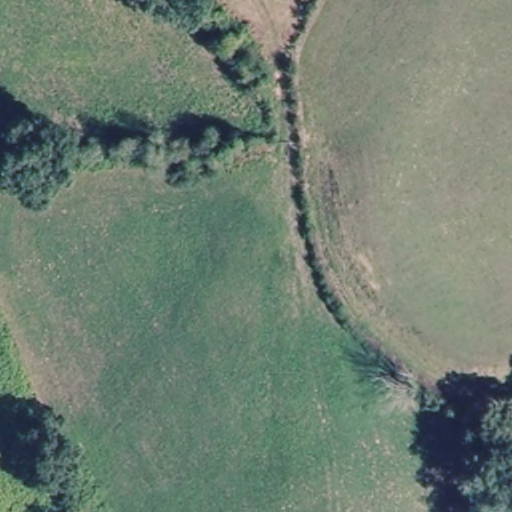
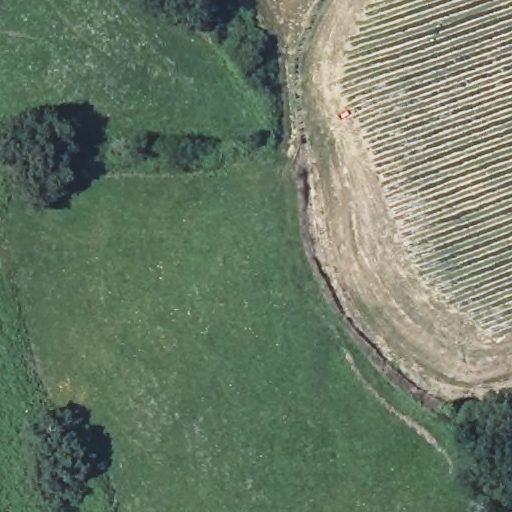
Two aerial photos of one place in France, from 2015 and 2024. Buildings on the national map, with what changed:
[]

